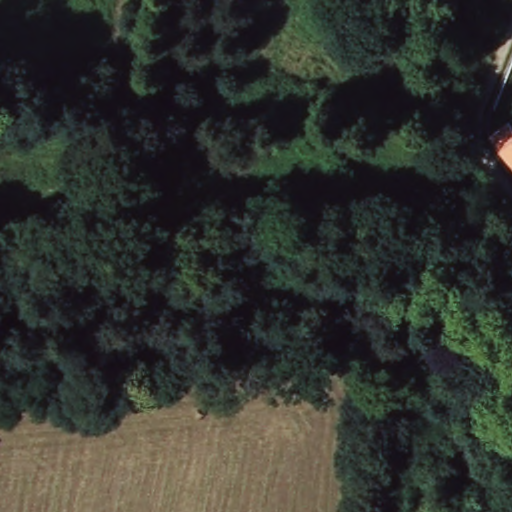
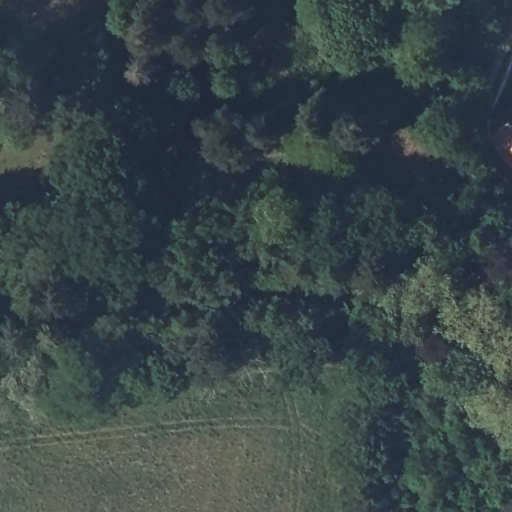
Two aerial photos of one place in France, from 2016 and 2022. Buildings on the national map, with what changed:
unchanged [(508,122),(512,130),(512,168),(488,138),(508,122)]

